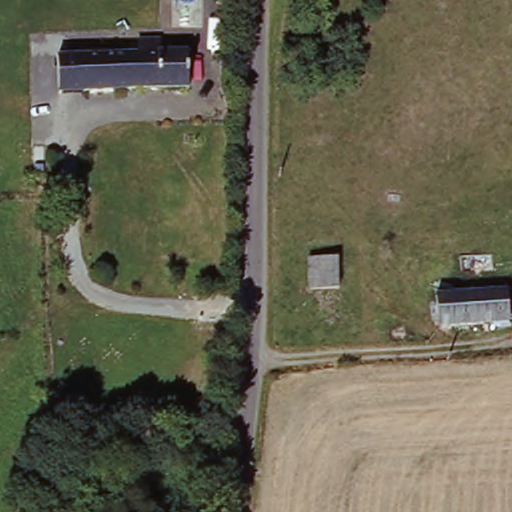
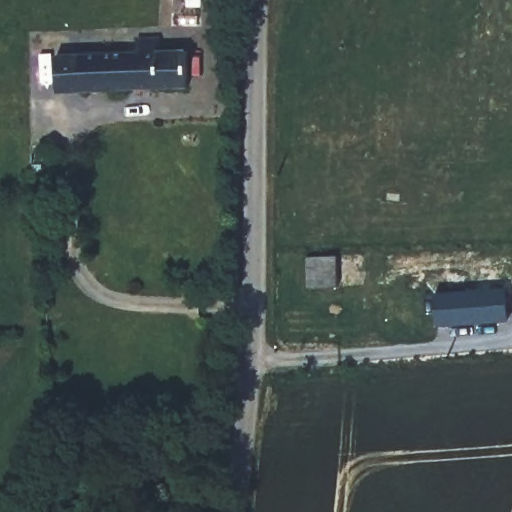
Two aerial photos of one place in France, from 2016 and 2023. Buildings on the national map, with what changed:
unchanged [(132,48),(132,34),(157,32),(157,47),(187,46),(188,83),(60,89),(59,51),(132,48)]
unchanged [(338,253),(338,283),(310,283),(309,253),(338,253)]
unchanged [(508,321),(439,326),(436,295),(505,290),(508,321)]

